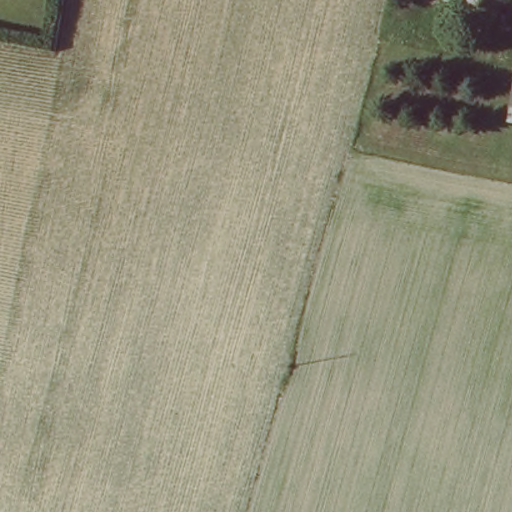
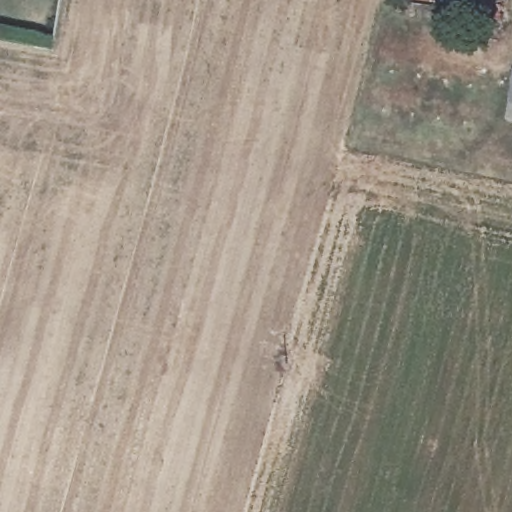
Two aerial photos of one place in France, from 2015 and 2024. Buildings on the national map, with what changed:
unchanged [(512,95),(512,103),(510,102),(512,95)]

